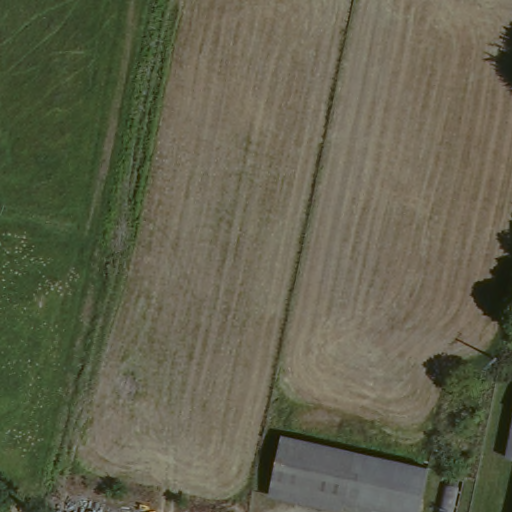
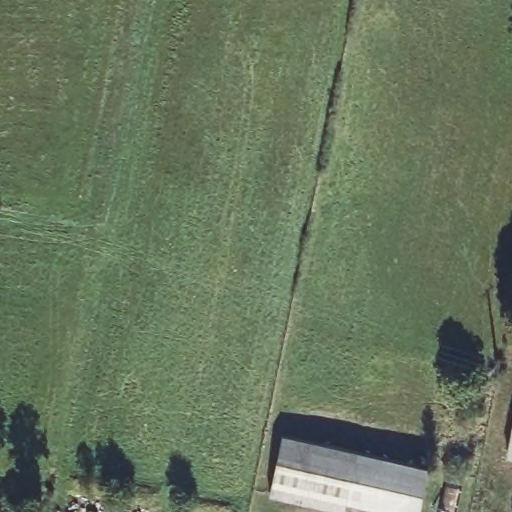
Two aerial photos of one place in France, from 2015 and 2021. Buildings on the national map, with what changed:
unchanged [(512,438),(512,457),(509,457),(512,438)]
unchanged [(434,465),(424,512),(416,512),(351,498),(348,510),(274,497),(284,440),(434,465)]

